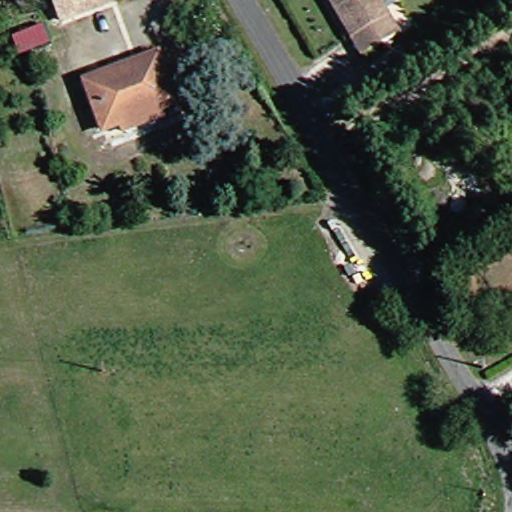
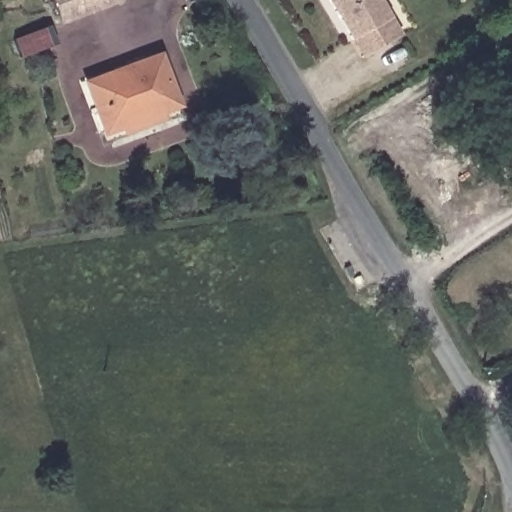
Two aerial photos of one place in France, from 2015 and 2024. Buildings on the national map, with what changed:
unchanged [(61,0),(122,0),(69,22),(61,0)]
unchanged [(385,0),(405,34),(367,58),(333,0),(385,0)]
unchanged [(27,55),(22,40),(34,33),(52,27),(57,44),(39,51),(27,55)]
unchanged [(128,126),(125,119),(111,126),(93,85),(165,57),(181,99),(162,104),(164,111),(128,126)]

